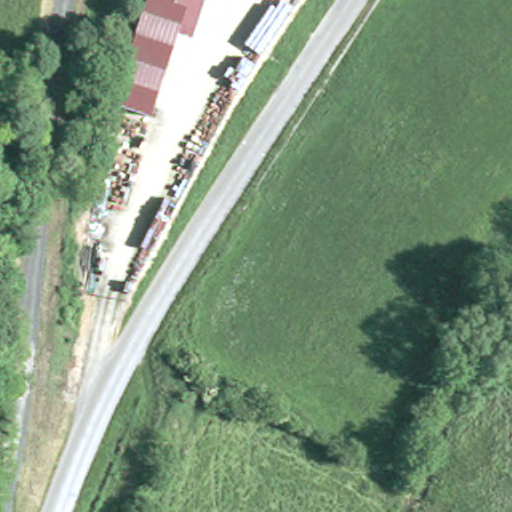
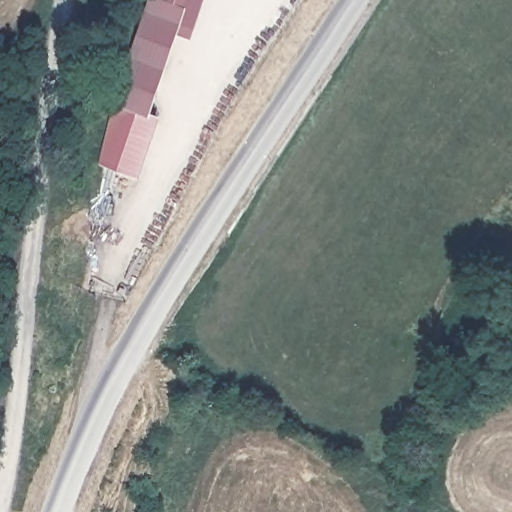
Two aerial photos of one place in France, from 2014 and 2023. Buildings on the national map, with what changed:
unchanged [(193,38),(178,33),(152,114),(113,100),(148,0),(206,0),(193,38)]
new [(141,177),(98,165),(113,100),(152,114),(161,117),(141,177)]

